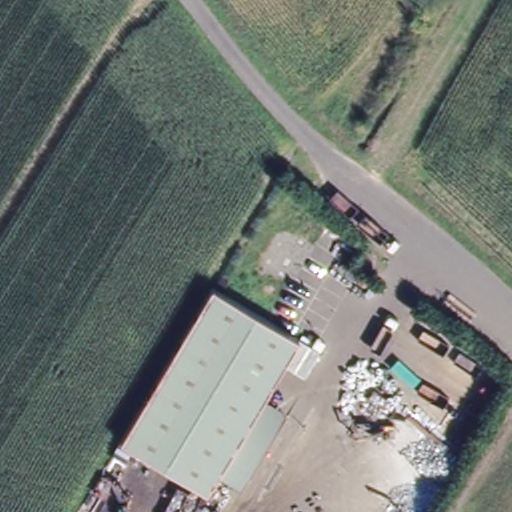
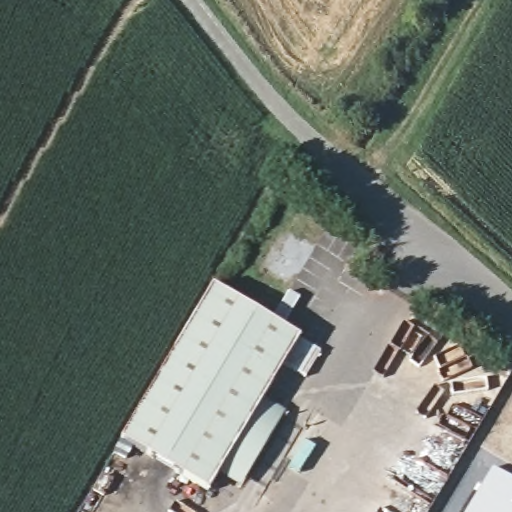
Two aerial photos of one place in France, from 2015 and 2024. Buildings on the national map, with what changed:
unchanged [(219,290),(300,341),(263,404),(281,417),(242,482),(222,470),(208,492),(126,442),(219,290)]
new [(492,467),(512,479),(512,512),(465,512),(492,467)]

